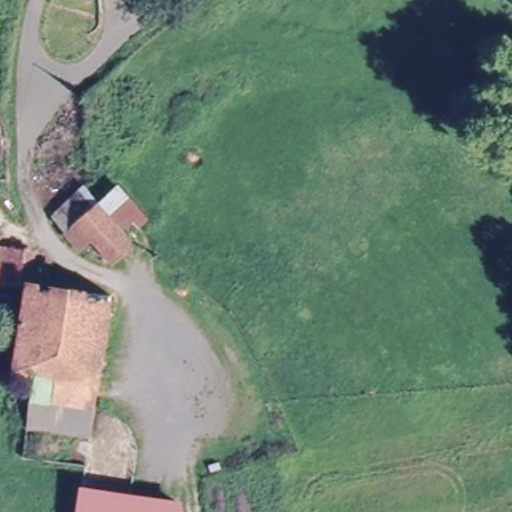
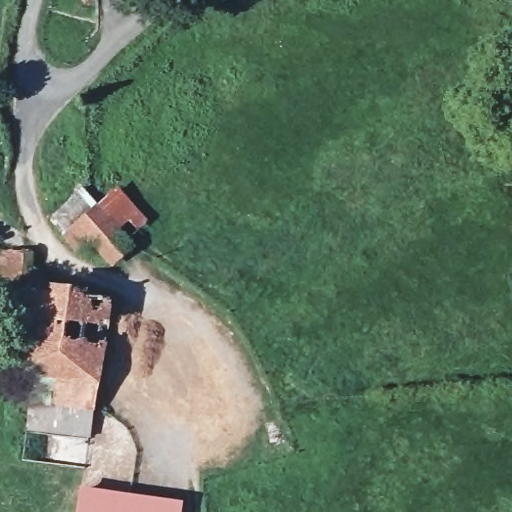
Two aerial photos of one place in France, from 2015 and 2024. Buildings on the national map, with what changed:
unchanged [(91,180),(105,193),(121,180),(157,222),(112,260),(95,240),(80,252),(48,218),(91,180)]
unchanged [(33,242),(29,279),(0,275),(0,258),(3,237),(33,242)]
unchanged [(100,373),(41,367),(18,365),(29,279),(106,288),(100,373)]
unchanged [(99,401),(39,397),(41,367),(100,373),(99,401)]
unchanged [(39,397),(99,401),(95,444),(35,439),(39,397)]
unchanged [(151,499),(179,502),(178,512),(78,512),(81,488),(125,495),(151,499)]

